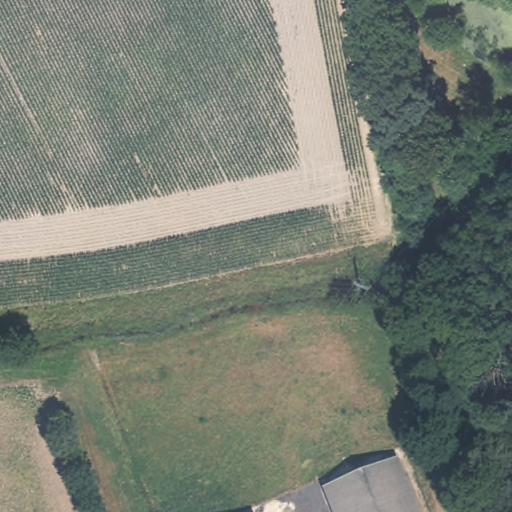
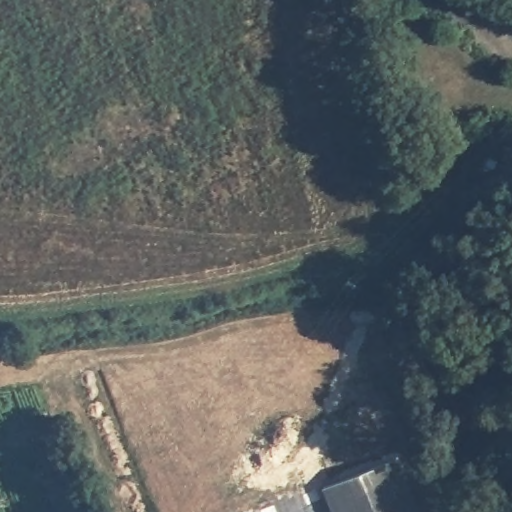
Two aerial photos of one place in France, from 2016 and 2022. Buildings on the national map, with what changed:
unchanged [(418,512),(331,512),(323,491),(397,461),(418,512)]

